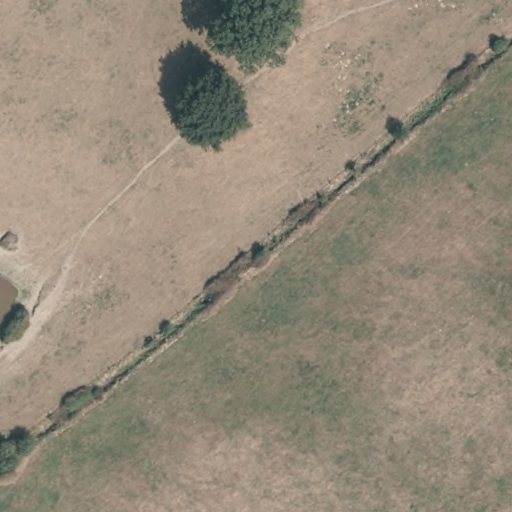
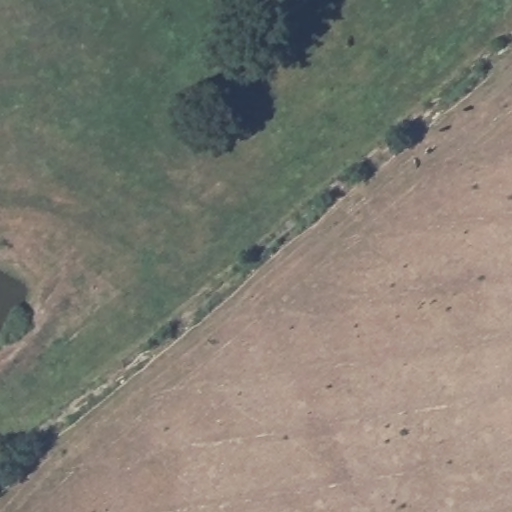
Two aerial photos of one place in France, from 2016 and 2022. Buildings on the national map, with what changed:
[]

